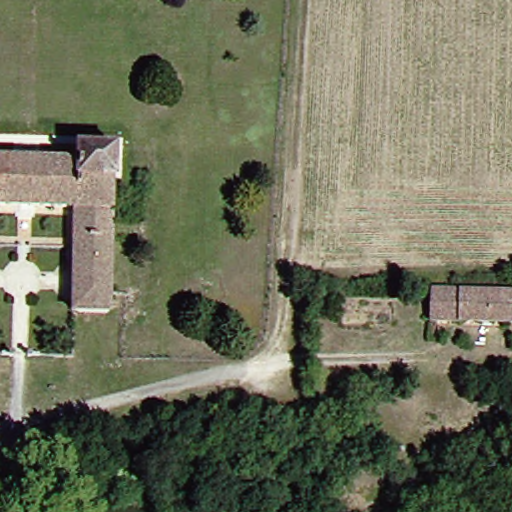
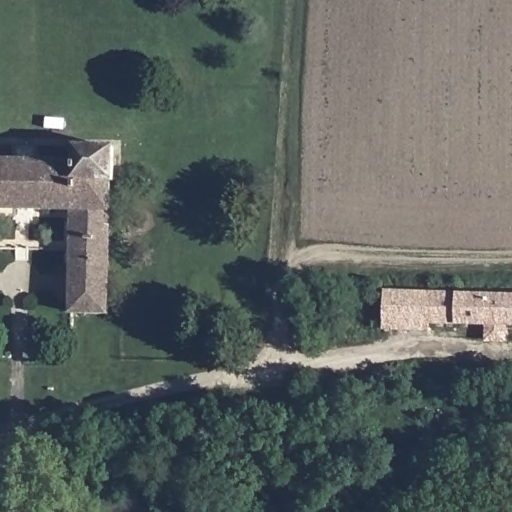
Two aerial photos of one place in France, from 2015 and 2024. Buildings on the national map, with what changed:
unchanged [(71,156),(110,158),(110,187),(103,187),(101,317),(60,315),(63,214),(0,210),(0,167),(70,171),(71,156)]
new [(382,331),(384,295),(424,297),(424,329),(382,331)]
unchanged [(512,299),(512,332),(424,329),(424,297),(512,299)]

